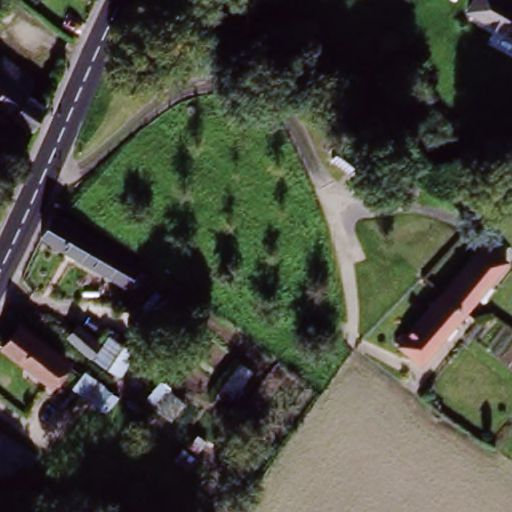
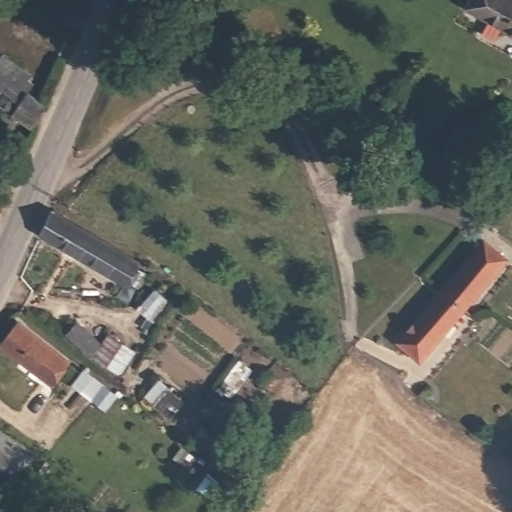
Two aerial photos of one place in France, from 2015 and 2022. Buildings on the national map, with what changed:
unchanged [(512,0),(512,32),(467,4),(469,0),(512,0)]
unchanged [(0,108),(0,59),(27,79),(18,91),(47,111),(33,131),(0,108)]
unchanged [(358,160),(350,171),(330,158),(337,146),(358,160)]
unchanged [(138,263),(127,285),(40,240),(50,219),(138,263)]
unchanged [(458,312),(437,294),(481,242),(502,260),(458,312)]
unchanged [(458,312),(417,360),(396,343),(437,294),(458,312)]
unchanged [(66,360),(48,383),(2,346),(20,323),(66,360)]
unchanged [(96,361),(87,355),(67,336),(77,323),(99,342),(107,349),(96,361)]
unchanged [(113,399),(100,387),(107,381),(120,392),(113,399)]
unchanged [(3,477),(0,475),(0,433),(22,446),(3,477)]

